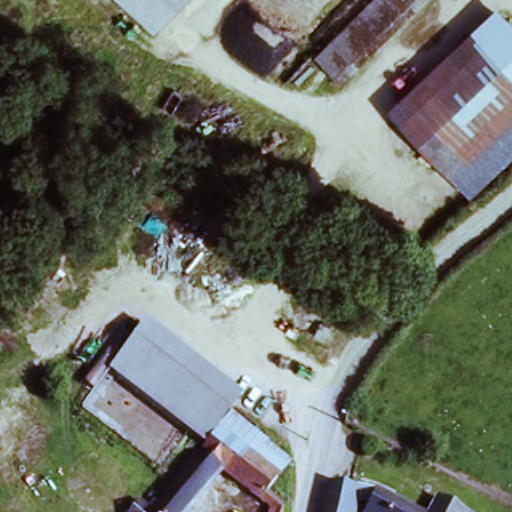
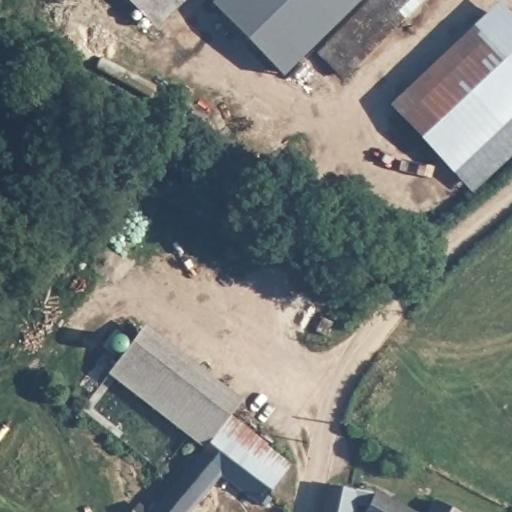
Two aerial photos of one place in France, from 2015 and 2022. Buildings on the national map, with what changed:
unchanged [(178,7),(159,25),(133,0),(171,0),(178,7)]
new [(217,0),(364,0),(284,78),(213,4),(217,0)]
unchanged [(346,81),(321,56),(374,0),(387,0),(400,13),(414,0),(425,0),(346,81)]
unchanged [(400,13),(387,0),(414,0),(400,13)]
unchanged [(501,13),(512,25),(512,133),(465,183),(397,120),(501,13)]
unchanged [(108,371),(145,323),(243,397),(229,415),(204,445),(108,371)]
unchanged [(192,512),(150,512),(204,445),(229,415),(288,465),(268,496),(283,508),(283,512),(265,512),(221,477),(192,512)]
unchanged [(398,512),(364,512),(365,510),(353,500),(355,491),(356,481),(377,496),(398,512)]
unchanged [(321,512),(327,485),(355,491),(353,500),(350,512),(321,512)]
unchanged [(146,512),(132,512),(138,504),(146,512)]
unchanged [(437,512),(425,512),(426,510),(437,512)]

